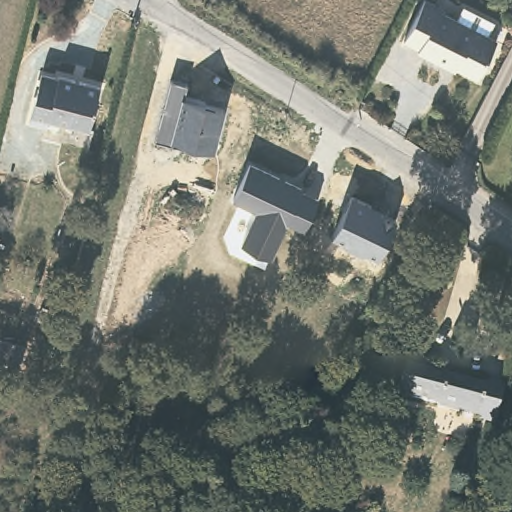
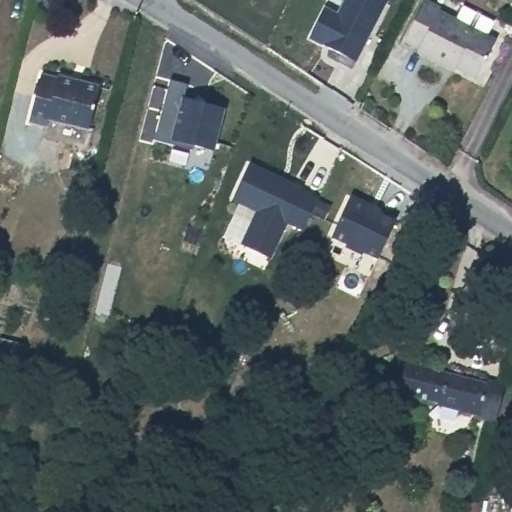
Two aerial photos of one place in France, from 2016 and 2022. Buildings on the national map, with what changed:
new [(337,13),(343,0),(384,0),(385,0),(350,68),(335,59),(338,52),(308,36),(323,6),(337,13)]
unchanged [(456,16),(462,3),(491,16),(485,30),(495,35),(477,74),(455,63),(453,66),(415,46),(417,43),(402,35),(420,0),(436,0),(440,1),(437,8),(456,16)]
unchanged [(57,79),(59,76),(100,86),(91,128),(48,119),(46,128),(31,121),(42,75),(57,79)]
unchanged [(195,144),(194,149),(158,140),(174,81),(188,85),(185,99),(225,110),(215,149),(195,144)]
unchanged [(303,188),(302,190),(318,198),(304,229),(287,223),(272,259),(243,244),(259,210),(234,200),(251,164),(303,188)]
unchanged [(354,197),(382,208),(381,212),(397,220),(380,258),(365,251),(362,254),(347,248),(347,244),(333,238),(354,197)]
unchanged [(26,346),(21,364),(14,363),(12,370),(0,366),(0,339),(26,346)]
unchanged [(491,385),(481,418),(440,409),(441,405),(398,395),(407,364),(491,385)]
unchanged [(307,512),(292,512),(292,506),(307,505),(307,512)]

